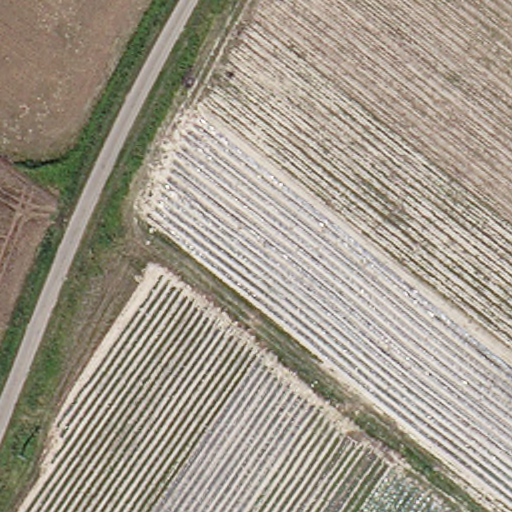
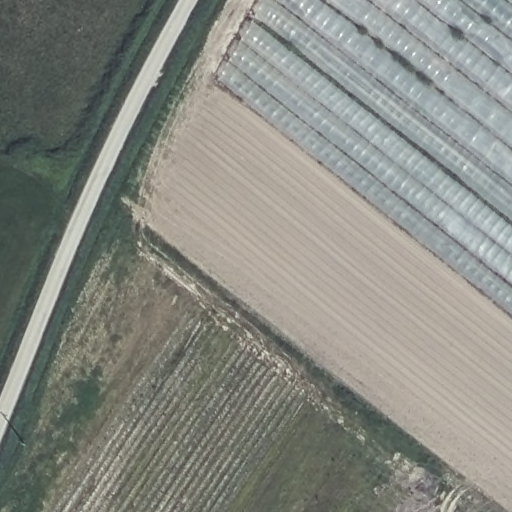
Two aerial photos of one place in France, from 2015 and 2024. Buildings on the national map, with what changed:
new [(211,79),(261,0),(512,0),(512,314),(211,79)]

